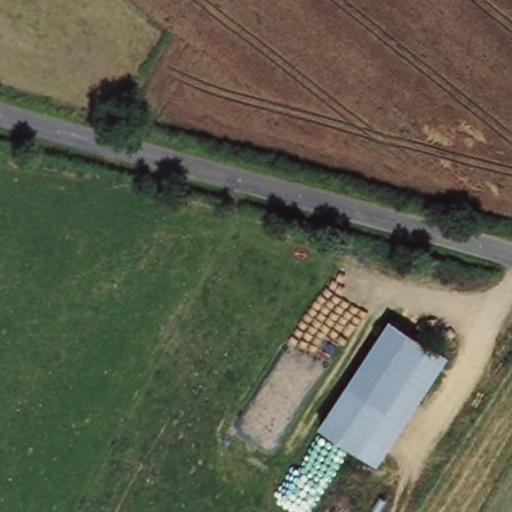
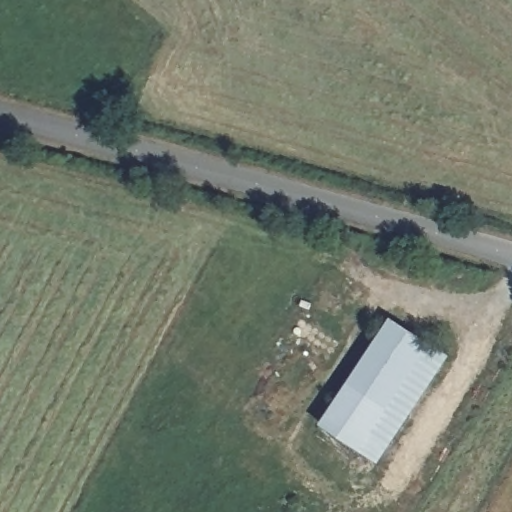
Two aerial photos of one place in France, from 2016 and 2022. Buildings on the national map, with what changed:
unchanged [(392,317),(453,357),(383,466),(320,425),(392,317)]

